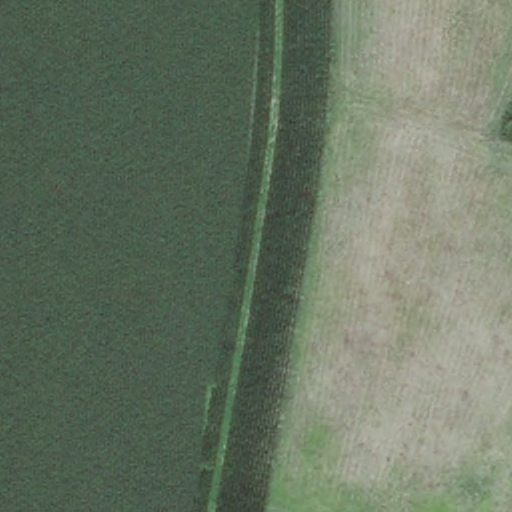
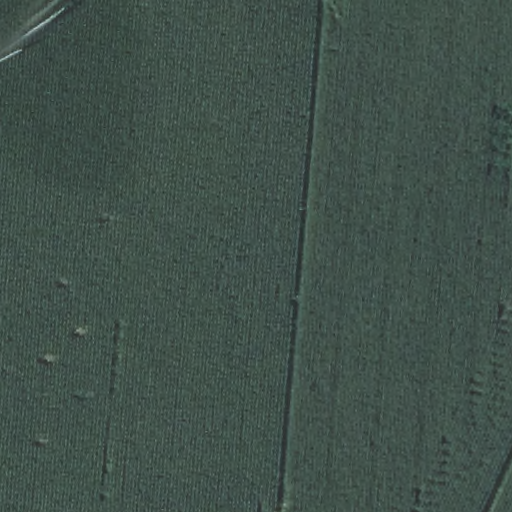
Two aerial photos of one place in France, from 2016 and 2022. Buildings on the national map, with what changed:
[]

